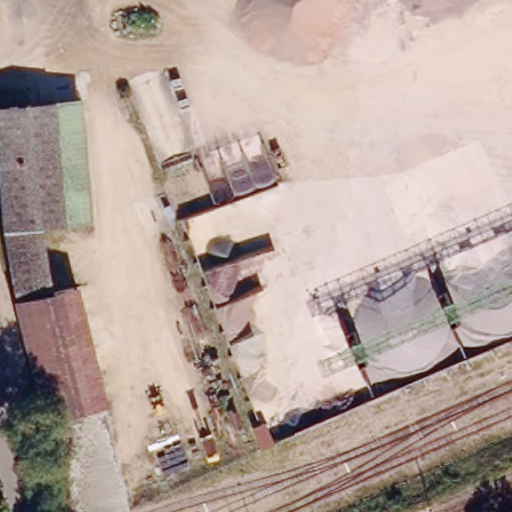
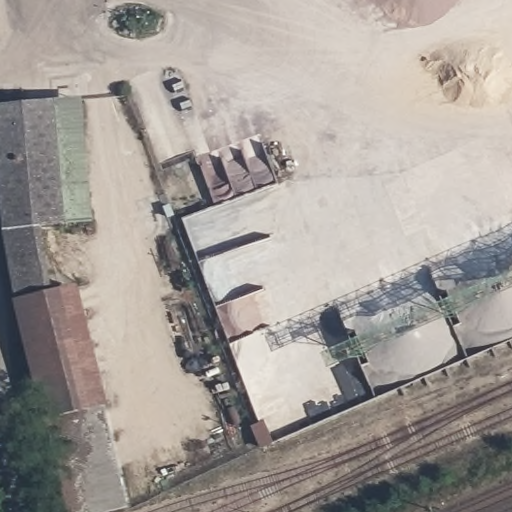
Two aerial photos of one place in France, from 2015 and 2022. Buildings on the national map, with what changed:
unchanged [(75,102),(83,190),(57,191),(50,105),(75,102)]
unchanged [(0,232),(0,110),(50,105),(57,191),(83,190),(86,223),(61,225),(35,226),(47,293),(12,302),(0,232)]
unchanged [(70,288),(112,458),(124,508),(108,512),(65,512),(58,485),(12,302),(47,293),(70,288)]

